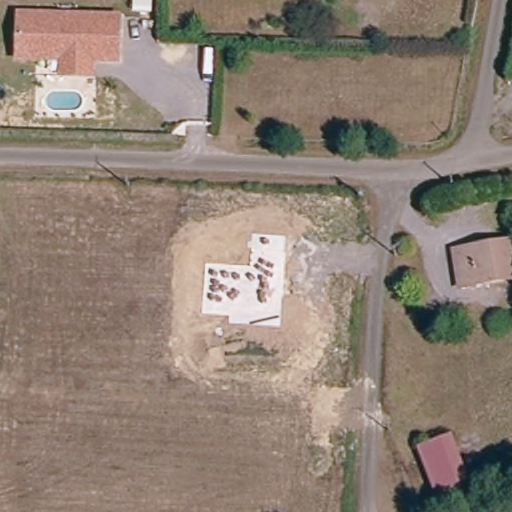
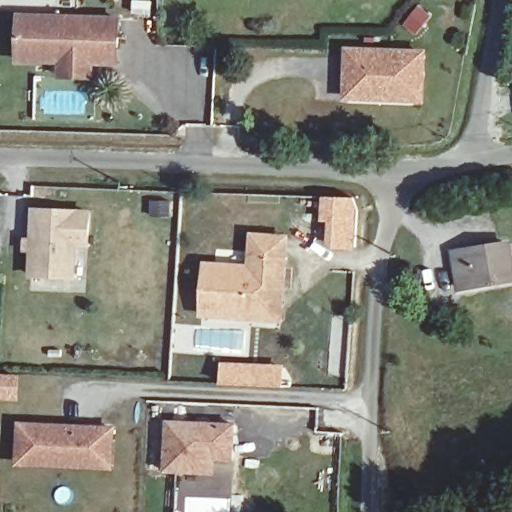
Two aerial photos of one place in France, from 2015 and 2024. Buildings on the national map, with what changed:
unchanged [(60,75),(60,59),(17,59),(18,34),(19,15),(119,16),(118,35),(117,60),(91,60),(90,75),(60,75)]
new [(345,45),(430,49),(427,105),(342,101),(345,45)]
new [(330,222),(321,221),(322,197),(359,199),(356,250),(328,249),(330,222)]
new [(94,210),(92,248),(80,248),(78,280),(29,276),(32,206),(94,210)]
new [(248,262),(250,230),(291,233),(285,324),(200,318),(204,260),(248,262)]
unchanged [(512,258),(512,284),(460,290),(456,256),(511,250),(512,258)]
new [(220,361),(285,365),(282,389),(219,385),(220,361)]
new [(164,473),(166,421),(237,425),(236,463),(217,462),(217,476),(164,473)]
unchanged [(83,467),(82,469),(25,467),(26,430),(120,432),(119,450),(119,470),(103,469),(104,467),(83,467)]
demolished [(423,451),(450,443),(461,480),(435,489),(423,451)]

